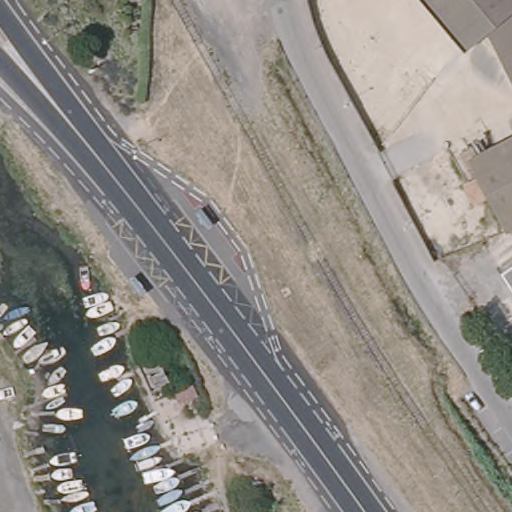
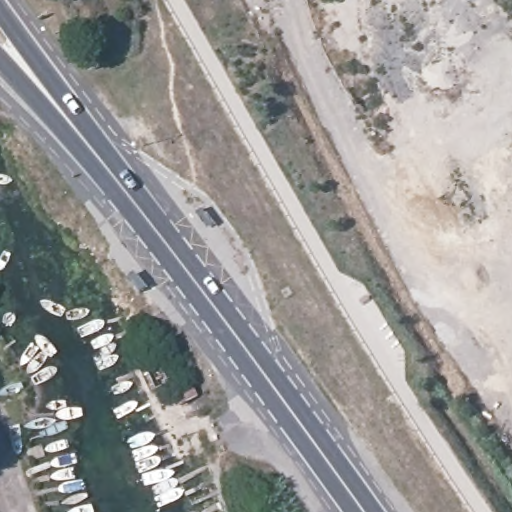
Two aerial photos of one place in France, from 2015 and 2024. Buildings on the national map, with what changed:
demolished [(467,51),(426,0),(512,0),(512,73),(491,32),(467,51)]
demolished [(503,228),(469,161),(512,137),(512,223),(503,228)]
demolished [(504,266),(512,261),(512,278),(504,266)]

